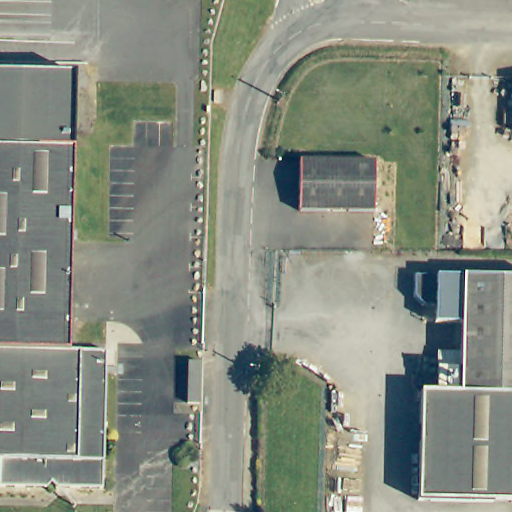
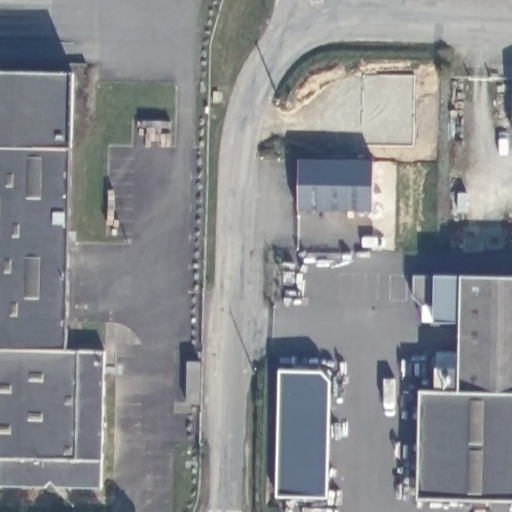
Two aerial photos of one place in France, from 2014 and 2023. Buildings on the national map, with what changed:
unchanged [(0,72),(78,73),(77,101),(0,99),(0,72)]
unchanged [(72,349),(109,350),(105,490),(0,488),(0,99),(77,101),(72,349)]
unchanged [(381,165),(379,215),(305,213),(306,163),(381,165)]
unchanged [(418,399),(419,389),(460,389),(461,322),(435,322),(435,305),(423,305),(414,295),(414,274),(512,276),(512,498),(417,496),(418,399)]
new [(278,498),(281,372),(322,372),(330,381),(327,499),(278,498)]

